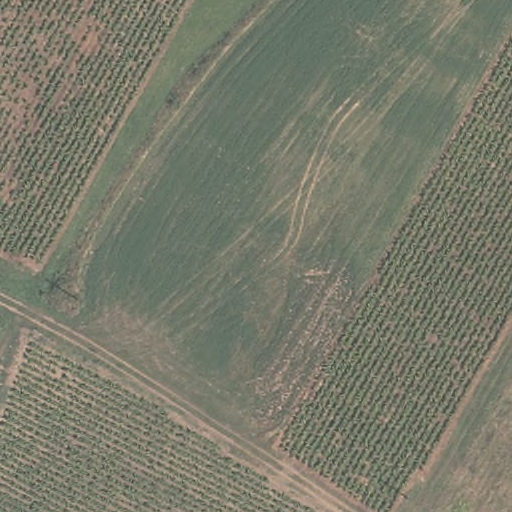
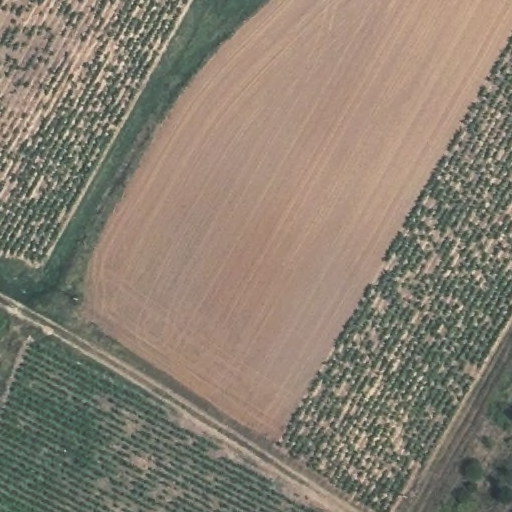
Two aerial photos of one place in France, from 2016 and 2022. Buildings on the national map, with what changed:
[]

